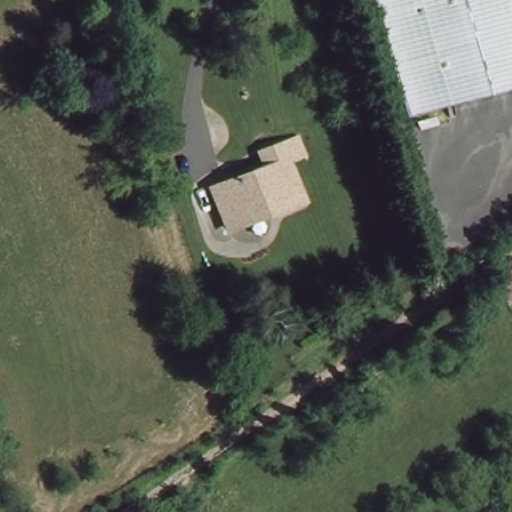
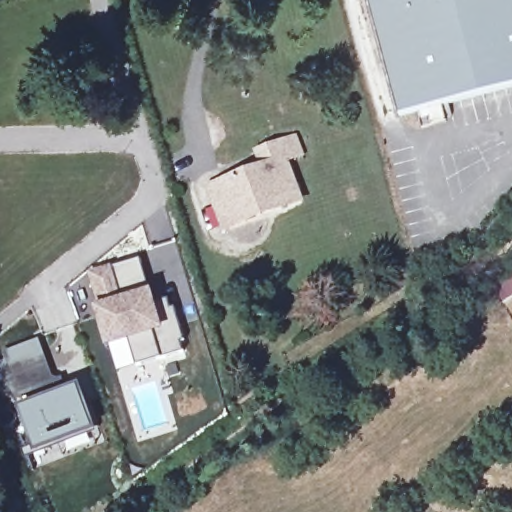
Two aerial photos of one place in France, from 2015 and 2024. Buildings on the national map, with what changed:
unchanged [(369,0),(433,0),(438,35),(488,33),(483,0),(512,0),(512,92),(405,124),(369,0)]
unchanged [(488,33),(438,35),(433,0),(483,0),(488,33)]
unchanged [(294,142),(300,157),(292,161),(283,164),(299,203),(237,227),(229,207),(216,211),(210,194),(262,172),(257,157),(285,145),(294,142)]
new [(139,258),(152,301),(144,304),(141,294),(122,300),(112,266),(139,258)]
new [(164,298),(167,308),(171,306),(181,340),(177,341),(180,352),(135,365),(125,333),(106,338),(97,308),(100,307),(89,273),(112,266),(122,300),(141,294),(144,304),(164,298)]
new [(40,337),(57,379),(60,378),(62,383),(16,402),(0,356),(0,353),(40,337)]
new [(74,386),(87,423),(31,444),(17,407),(74,386)]

